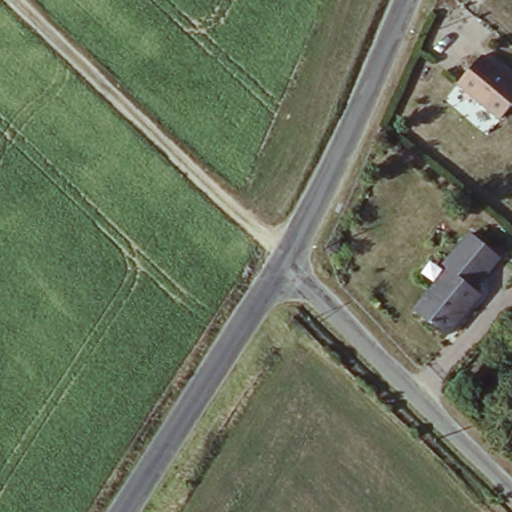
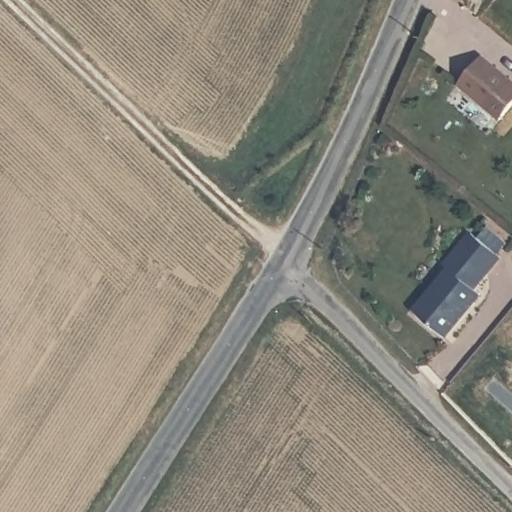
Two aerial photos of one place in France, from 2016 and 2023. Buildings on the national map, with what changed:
unchanged [(487,54),(512,78),(512,106),(501,119),(462,82),(487,54)]
unchanged [(496,253),(469,282),(477,290),(434,337),(408,314),(449,270),(440,261),(468,228),(496,253)]

